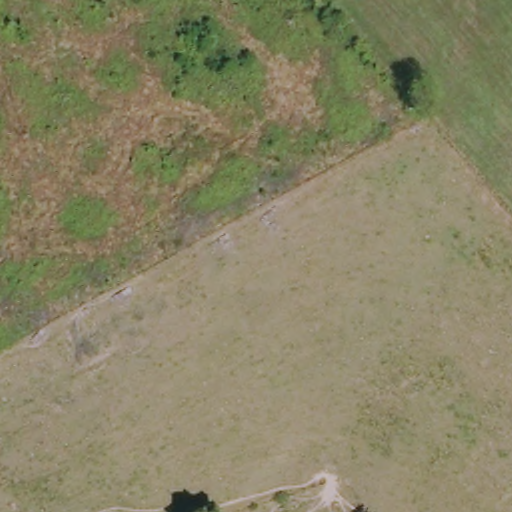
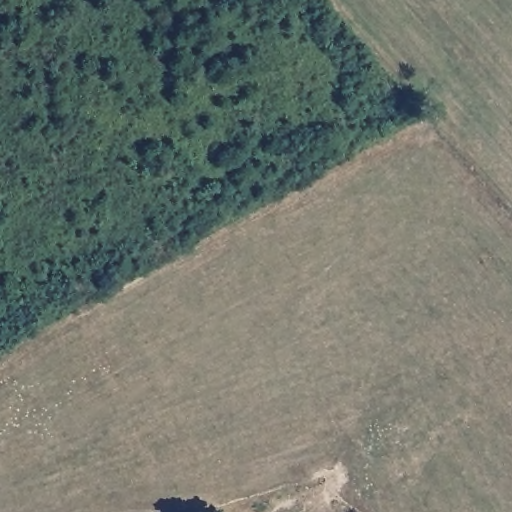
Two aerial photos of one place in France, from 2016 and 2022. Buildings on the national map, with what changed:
[]

